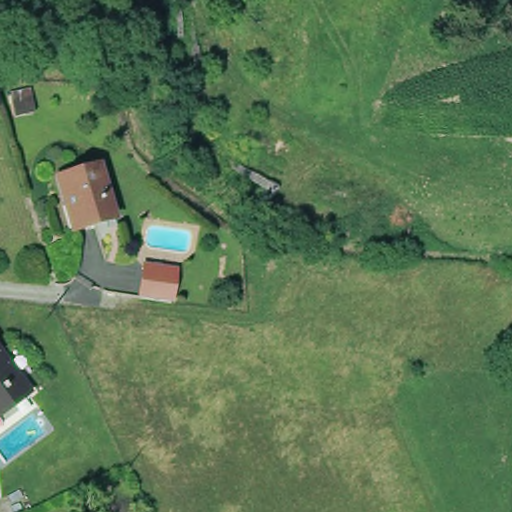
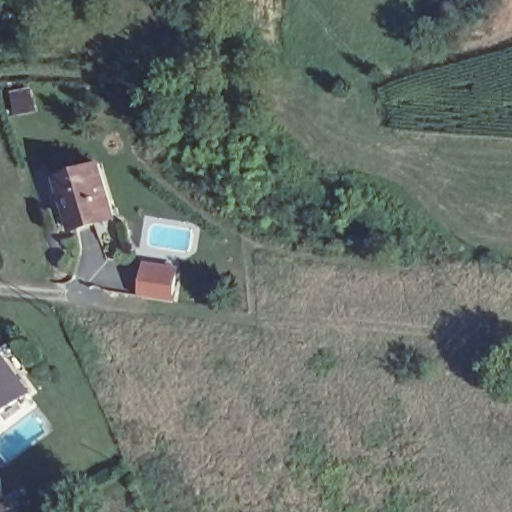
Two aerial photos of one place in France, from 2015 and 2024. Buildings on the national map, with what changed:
unchanged [(107,229),(105,222),(97,224),(73,232),(56,178),(97,166),(111,210),(114,219),(117,226),(107,229)]
unchanged [(178,273),(174,304),(142,299),(146,268),(178,273)]
unchanged [(0,417),(0,360),(28,398),(0,417)]

